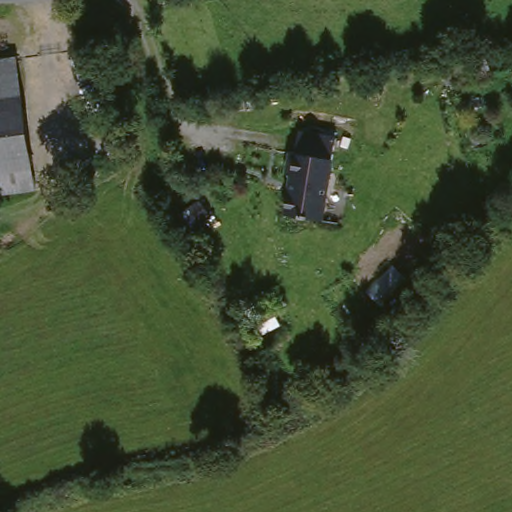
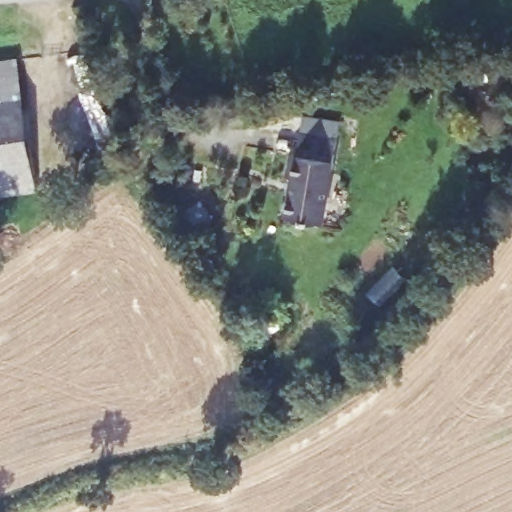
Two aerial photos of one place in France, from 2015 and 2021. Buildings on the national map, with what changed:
unchanged [(29,143),(0,147),(0,66),(19,63),(29,143)]
unchanged [(319,219),(283,209),(296,173),(289,171),(296,148),(302,150),(309,129),(346,141),(319,219)]
unchanged [(0,181),(0,147),(29,143),(34,176),(0,181)]

